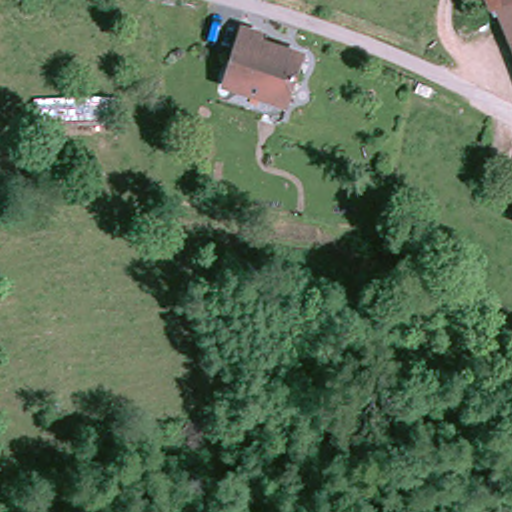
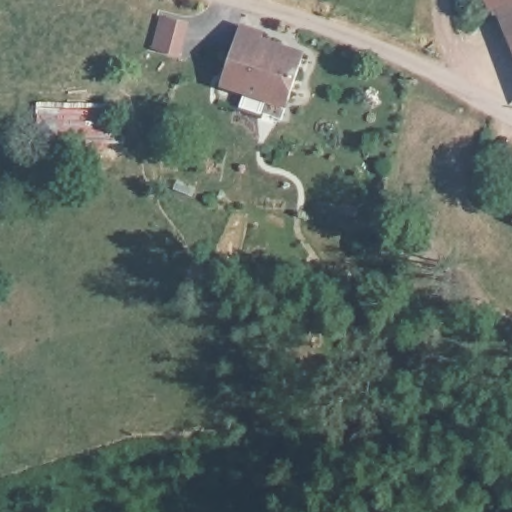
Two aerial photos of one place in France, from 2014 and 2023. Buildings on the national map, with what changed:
unchanged [(512,7),(505,10),(498,13),(493,0),(512,0),(512,7)]
unchanged [(505,10),(512,7),(512,28),(510,23),(505,10)]
new [(189,20),(180,56),(153,49),(161,12),(189,20)]
unchanged [(224,85),(242,30),(257,35),(255,41),(302,58),(286,105),(224,85)]

